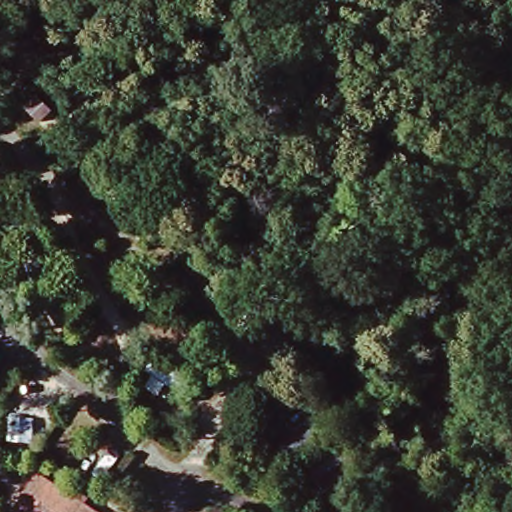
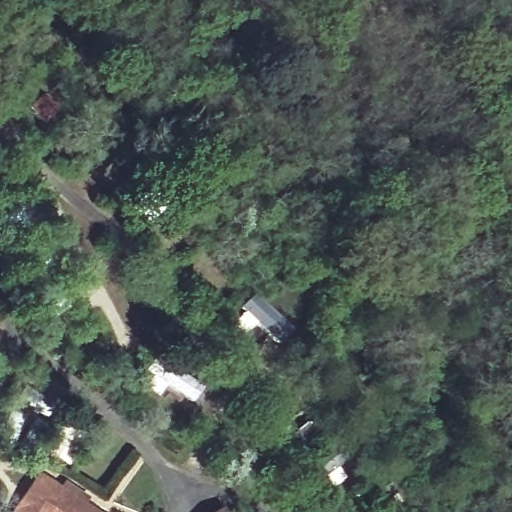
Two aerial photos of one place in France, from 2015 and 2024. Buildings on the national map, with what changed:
unchanged [(20,512),(44,476),(98,512),(21,512),(20,512)]
unchanged [(223,511),(224,512),(221,512),(223,511)]

